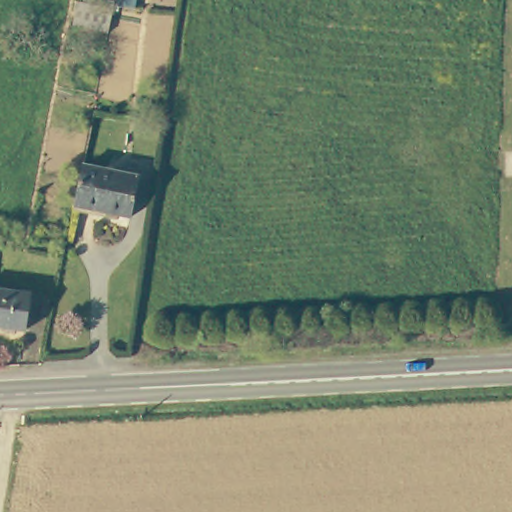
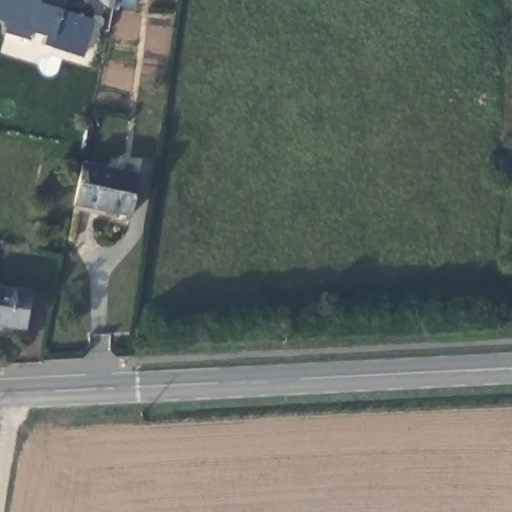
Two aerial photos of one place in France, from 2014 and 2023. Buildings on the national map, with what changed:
new [(42,46),(45,39),(31,35),(29,44),(2,35),(6,23),(0,21),(0,0),(67,0),(63,11),(95,23),(84,60),(42,46)]
demolished [(106,29),(71,21),(76,0),(81,0),(87,1),(87,0),(112,0),(106,29)]
unchanged [(138,172),(130,212),(77,202),(85,161),(138,172)]
unchanged [(25,325),(0,323),(0,290),(27,291),(25,325)]

